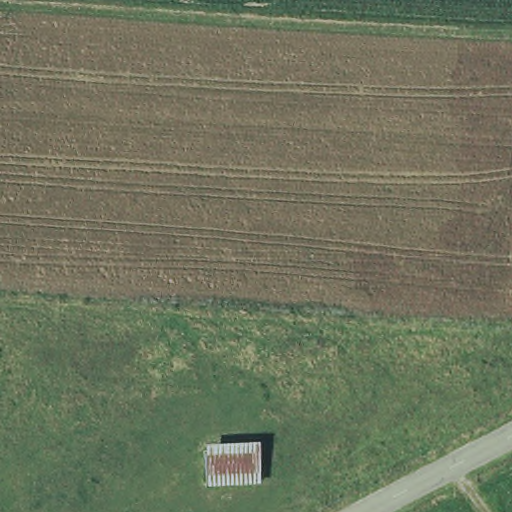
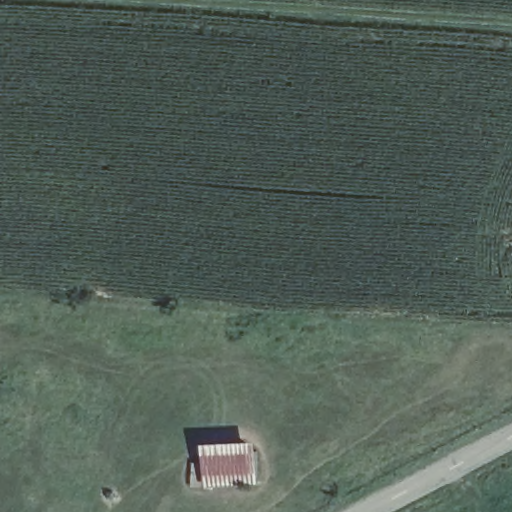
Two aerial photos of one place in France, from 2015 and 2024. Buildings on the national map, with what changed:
unchanged [(260,474),(212,477),(210,445),(260,443),(260,474)]

